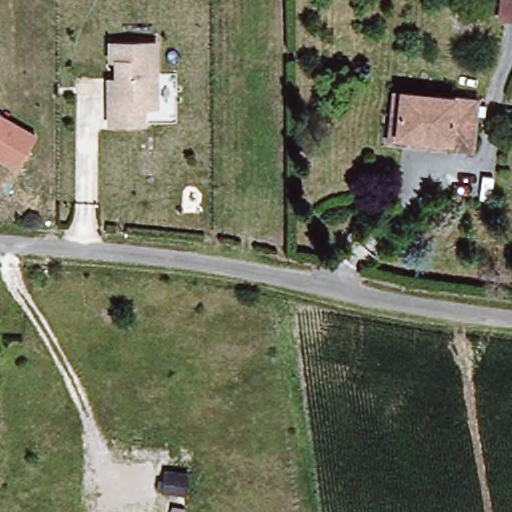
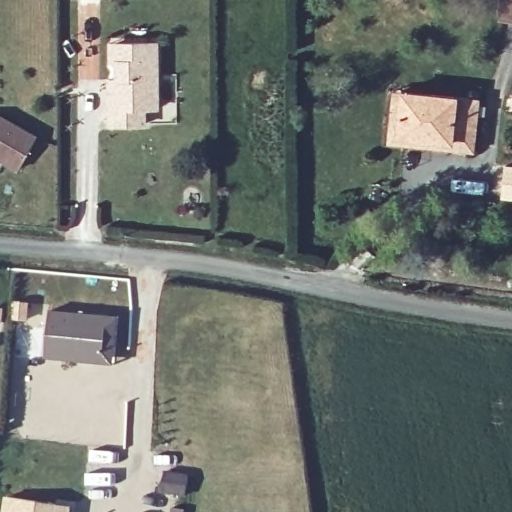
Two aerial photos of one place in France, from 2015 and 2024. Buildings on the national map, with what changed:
unchanged [(500,0),(512,0),(512,17),(498,15),(500,0)]
unchanged [(158,42),(160,112),(147,112),(147,131),(107,131),(106,81),(113,81),(112,65),(107,66),(106,45),(158,42)]
unchanged [(396,96),(471,103),(465,146),(390,138),(396,96)]
unchanged [(37,138),(16,174),(0,165),(0,116),(37,138)]
new [(512,164),(512,198),(498,197),(501,162),(512,164)]
new [(45,358),(48,315),(106,320),(116,321),(112,369),(72,365),(73,360),(45,358)]
new [(164,471),(188,473),(185,494),(162,491),(164,471)]
new [(64,512),(0,512),(2,497),(50,504),(65,506),(64,512)]

